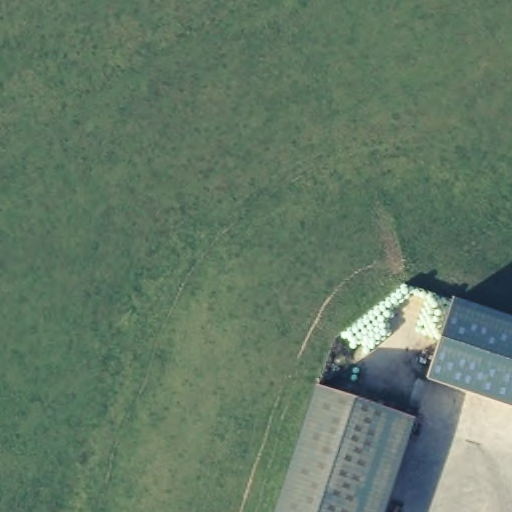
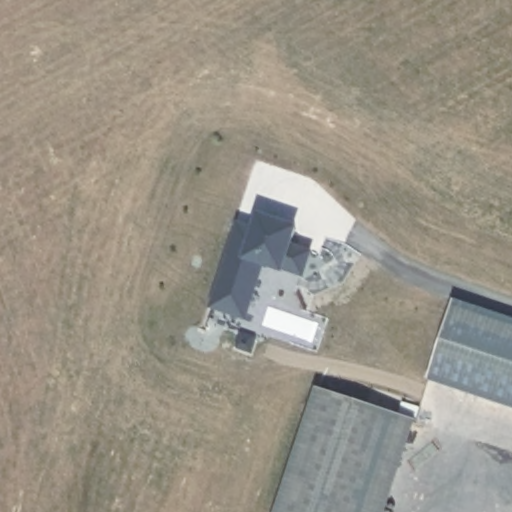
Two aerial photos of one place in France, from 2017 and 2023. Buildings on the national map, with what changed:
new [(210,309),(238,224),(254,229),(258,215),(297,228),(292,246),(311,252),(304,277),(284,272),(263,267),(247,322),(210,309)]
unchanged [(427,381),(454,301),(512,319),(512,408),(427,381)]
unchanged [(390,512),(279,512),(321,385),(420,420),(390,512)]

